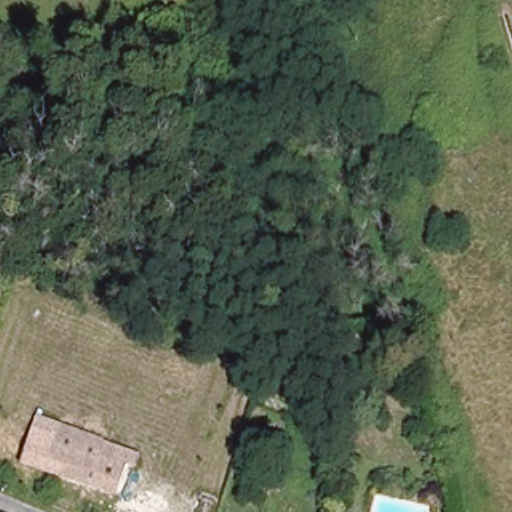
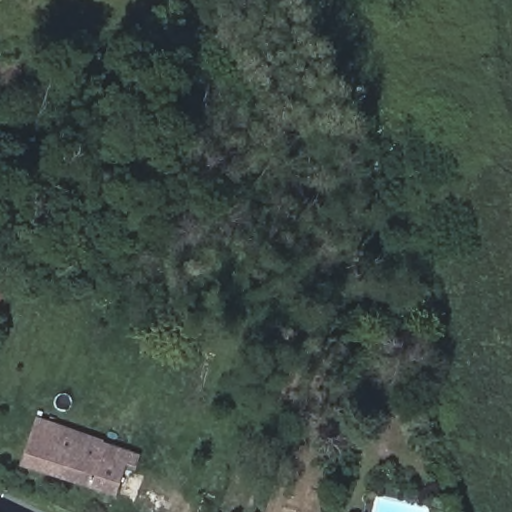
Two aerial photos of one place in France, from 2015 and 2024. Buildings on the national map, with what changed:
unchanged [(45,464),(52,441),(59,421),(104,436),(103,439),(136,451),(140,452),(136,466),(131,463),(127,462),(117,491),(61,470),(45,464)]

